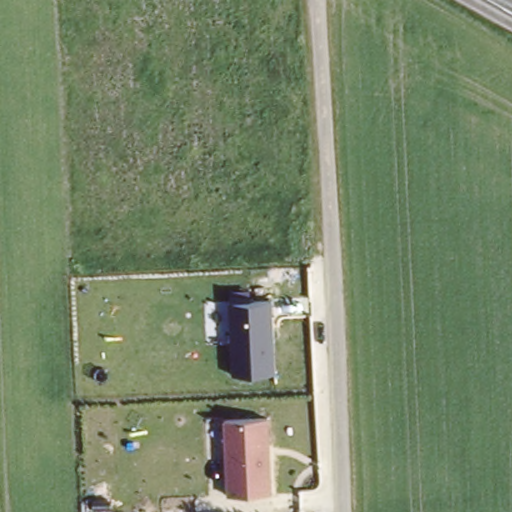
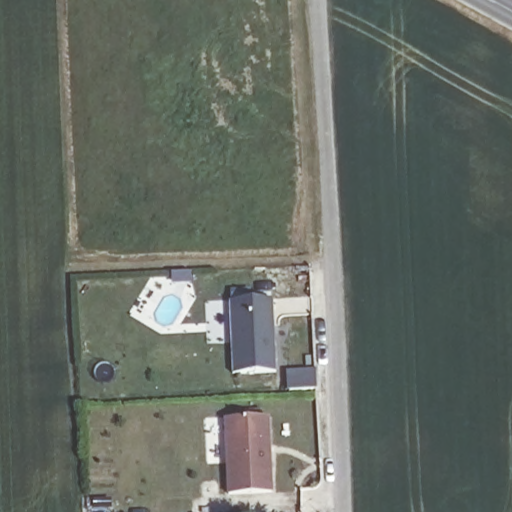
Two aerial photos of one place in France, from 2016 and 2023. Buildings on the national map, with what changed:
unchanged [(275,297),(280,372),(237,375),(234,299),(275,297)]
unchanged [(267,415),(272,494),(230,495),(227,418),(267,415)]

